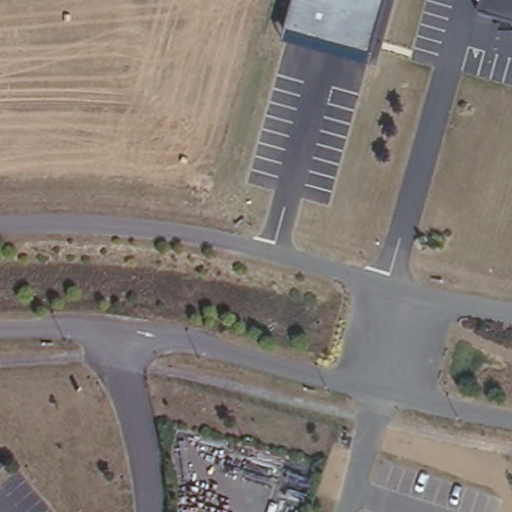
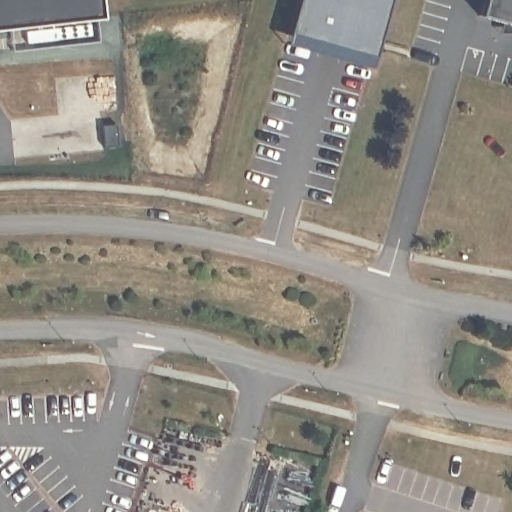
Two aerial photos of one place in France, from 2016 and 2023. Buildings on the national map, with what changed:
new [(99,15),(0,27),(0,0),(98,0),(99,15)]
unchanged [(288,30),(296,0),(386,0),(371,53),(288,30)]
unchanged [(511,22),(489,16),(493,0),(512,0),(512,33),(509,33),(511,22)]

